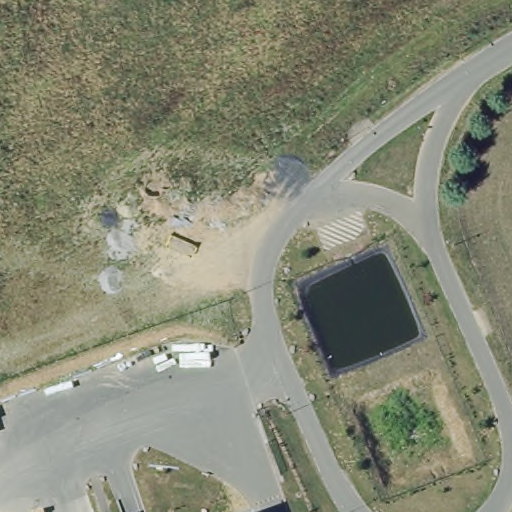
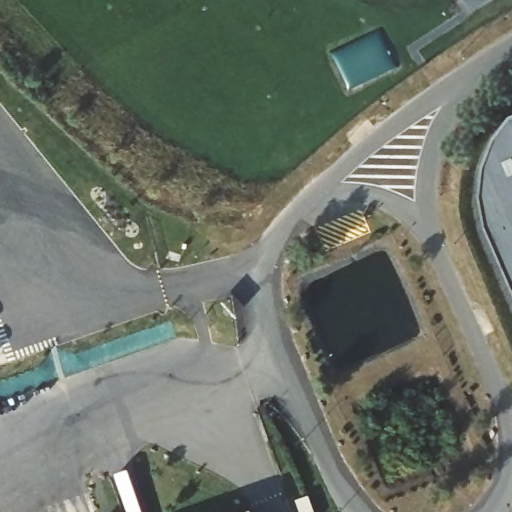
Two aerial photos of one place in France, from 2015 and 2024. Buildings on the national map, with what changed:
new [(479,202),(482,173),(493,144),(511,123),(512,123),(512,292),(486,233),(479,202)]

